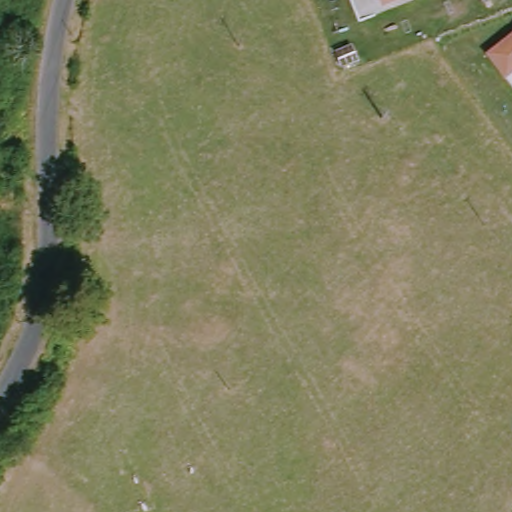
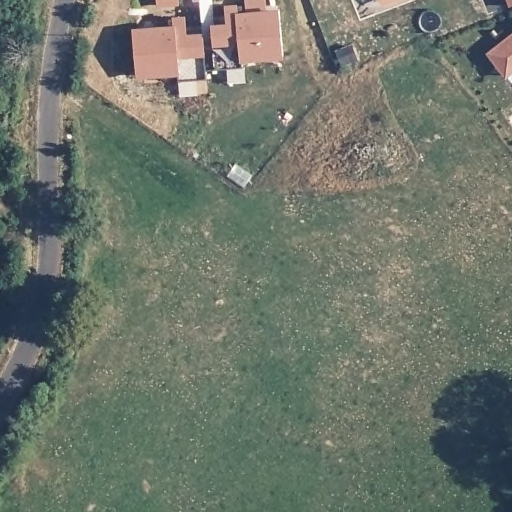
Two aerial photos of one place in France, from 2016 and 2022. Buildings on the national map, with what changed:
new [(152,0),(178,0),(179,16),(185,16),(186,33),(202,32),(203,55),(177,56),(178,75),(137,77),(132,28),(156,26),(152,0)]
unchanged [(384,7),(381,0),(402,0),(384,7)]
new [(505,0),(512,0),(512,4),(507,6),(505,0)]
new [(239,43),(214,44),(212,24),(226,22),(224,4),(237,3),(238,11),(278,8),(284,57),(242,61),(239,43)]
unchanged [(504,78),(484,51),(512,30),(512,72),(504,78)]

